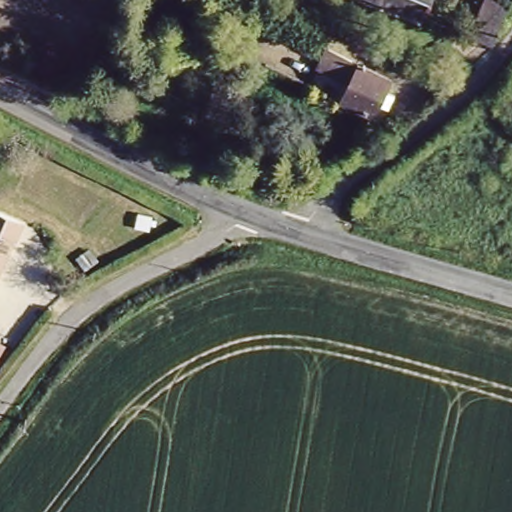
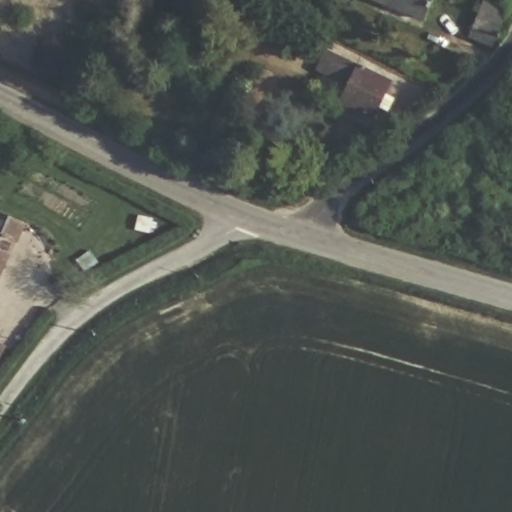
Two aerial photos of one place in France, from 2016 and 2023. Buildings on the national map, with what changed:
unchanged [(417,25),(358,0),(430,0),(417,25)]
unchanged [(491,45),(462,32),(474,7),(477,0),(498,0),(503,2),(497,17),(507,21),(491,45)]
unchanged [(367,126),(337,111),(348,83),(319,69),(326,48),(387,81),(367,126)]
unchanged [(15,236),(0,275),(0,230),(15,236)]

